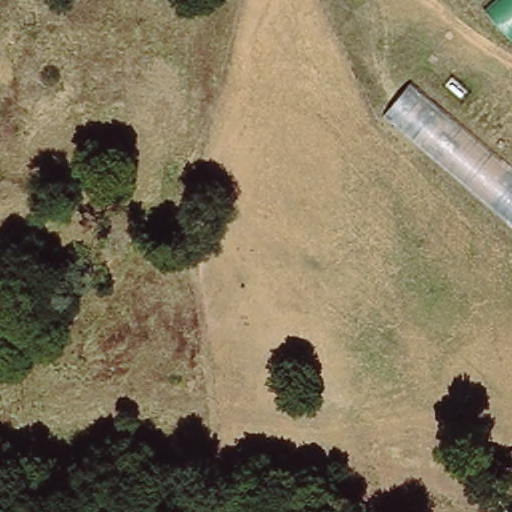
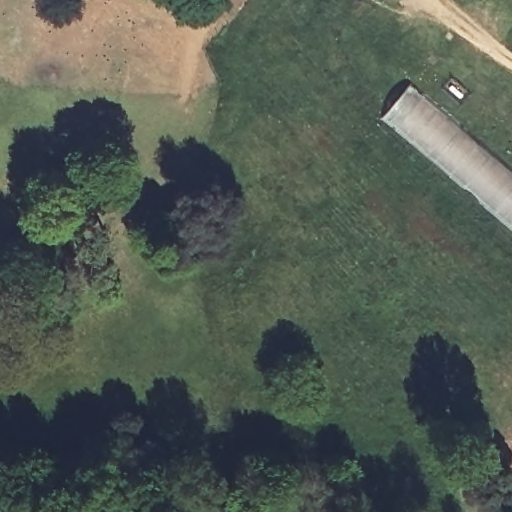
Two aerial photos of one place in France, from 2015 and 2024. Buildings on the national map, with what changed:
demolished [(491,0),(512,0),(512,42),(480,9),(491,0)]
unchanged [(512,171),(512,228),(381,117),(410,86),(512,171)]

